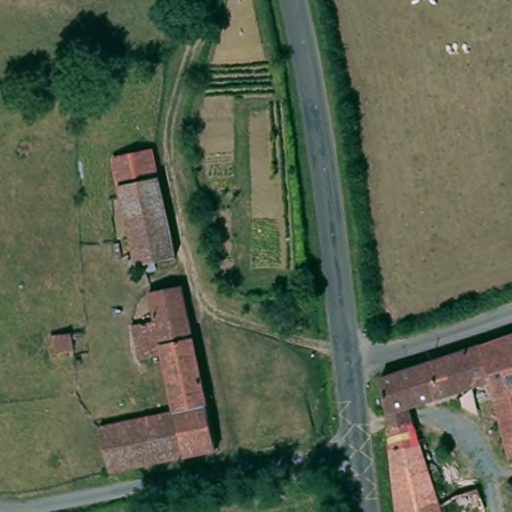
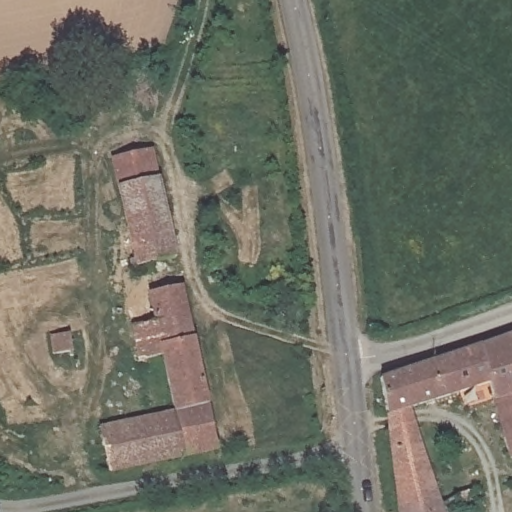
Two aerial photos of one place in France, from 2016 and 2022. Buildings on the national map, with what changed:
unchanged [(149,148),(156,181),(120,188),(113,155),(149,148)]
unchanged [(156,181),(173,257),(137,263),(120,188),(156,181)]
unchanged [(109,472),(99,428),(173,412),(161,355),(137,358),(131,327),(153,321),(147,293),(181,285),(193,338),(209,406),(218,451),(185,457),(109,472)]
unchanged [(510,458),(487,382),(411,406),(437,498),(480,486),(484,508),(471,512),(395,512),(378,375),(512,330),(512,458),(510,458)]

